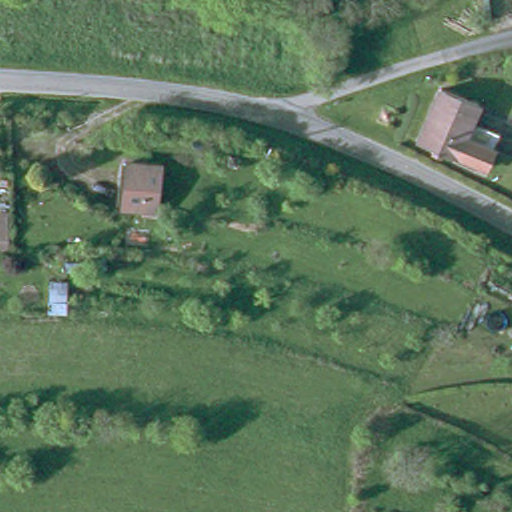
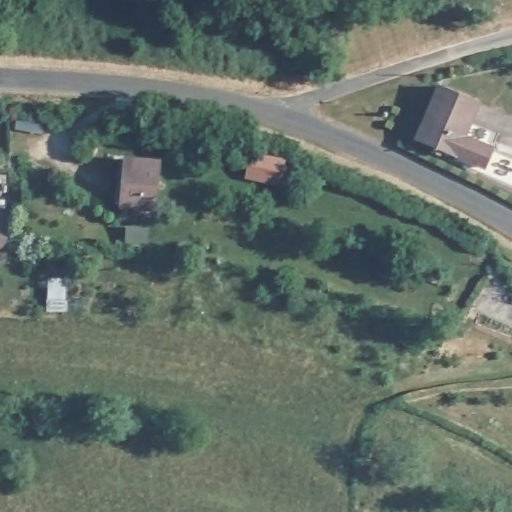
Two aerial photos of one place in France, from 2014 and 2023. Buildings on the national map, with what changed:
unchanged [(456,158),(415,148),(428,91),(470,101),(465,120),(494,127),(491,139),(490,143),(483,171),(480,170),(455,165),(456,158)]
unchanged [(119,200),(123,156),(131,156),(157,159),(153,203),(127,201),(119,200)]

